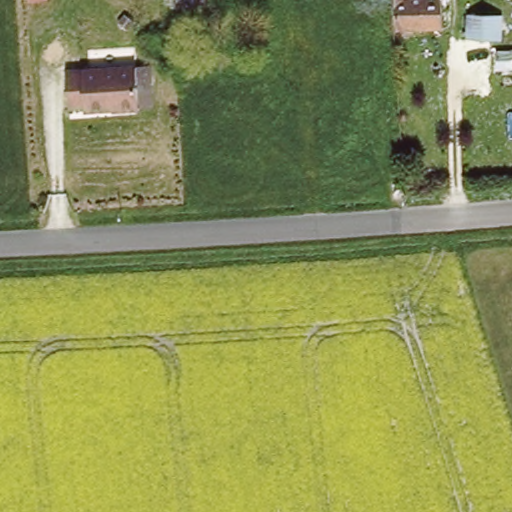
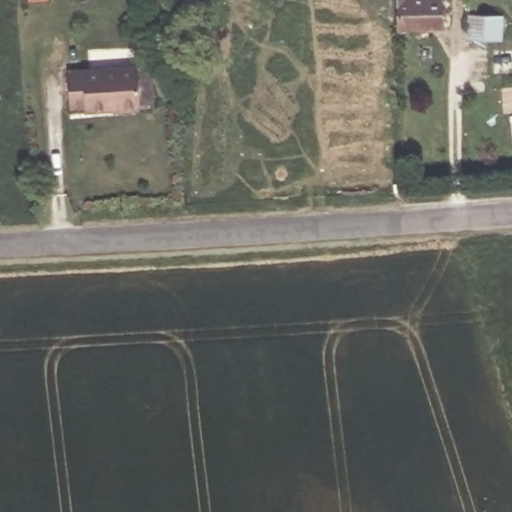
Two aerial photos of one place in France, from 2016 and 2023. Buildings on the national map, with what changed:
unchanged [(174,0),(207,0),(207,2),(174,5),(174,0)]
unchanged [(417,0),(443,0),(443,27),(397,27),(394,0),(417,0)]
unchanged [(472,16),(504,18),(502,43),(470,40),(472,16)]
unchanged [(65,64),(132,60),(134,101),(78,104),(77,98),(67,99),(65,64)]

